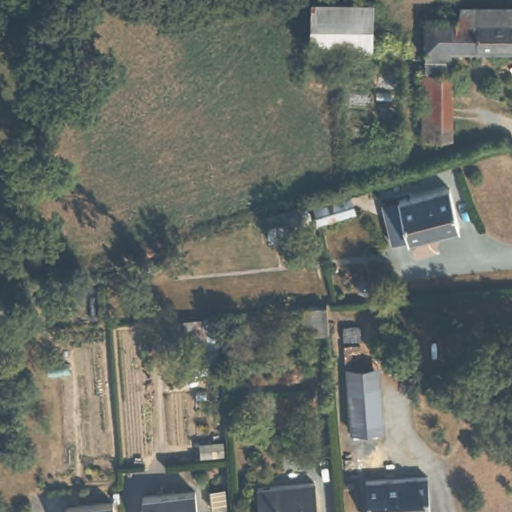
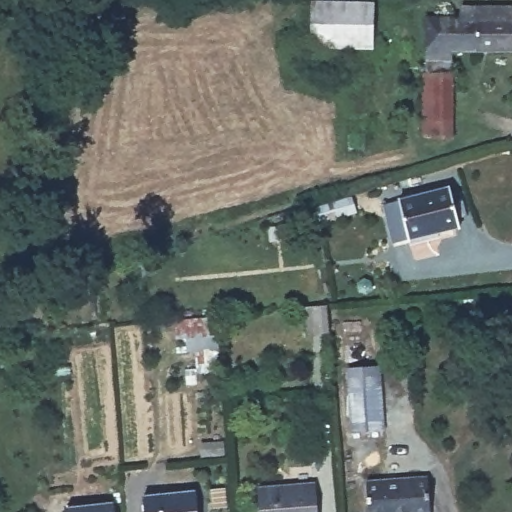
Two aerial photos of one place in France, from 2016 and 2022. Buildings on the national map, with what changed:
unchanged [(315,0),(375,0),(380,47),(335,54),(328,53),(314,54),(310,0),(315,0)]
unchanged [(505,11),(505,21),(512,21),(512,53),(455,50),(452,136),(423,139),(419,76),(420,76),(416,18),(452,18),(452,15),(452,9),(488,10),(505,11)]
unchanged [(411,242),(410,236),(393,241),(383,206),(400,201),(451,186),(462,222),(451,225),(452,231),(411,242)]
unchanged [(353,192),(360,213),(316,223),(313,204),(353,192)]
unchanged [(328,329),(309,330),(307,304),(327,302),(328,329)]
unchanged [(217,316),(220,364),(181,366),(177,318),(217,316)]
unchanged [(339,361),(385,359),(386,430),(342,430),(339,361)]
unchanged [(369,512),(366,480),(429,475),(432,512),(369,512)]
unchanged [(262,512),(260,487),(319,483),(321,512),(262,512)]
unchanged [(201,512),(149,512),(147,496),(196,492),(200,492),(201,512)]
unchanged [(68,512),(67,506),(116,502),(117,512),(68,512)]

